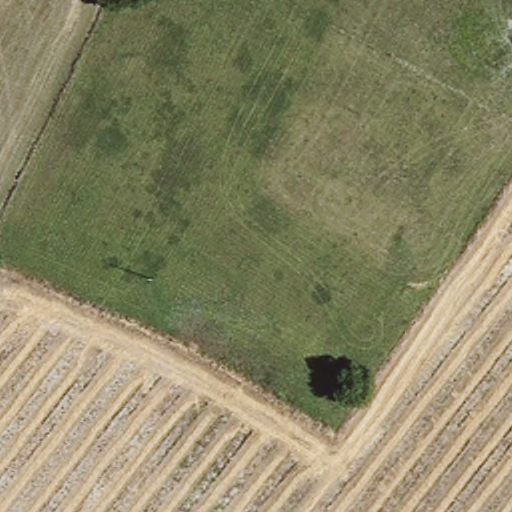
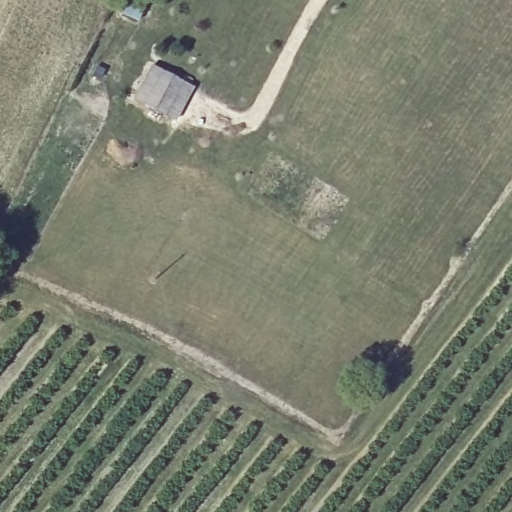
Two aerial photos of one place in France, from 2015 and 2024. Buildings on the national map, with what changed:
new [(174,124),(132,100),(151,66),(193,90),(174,124)]

